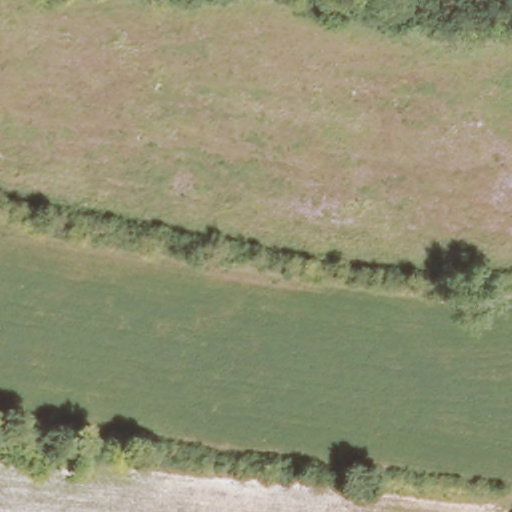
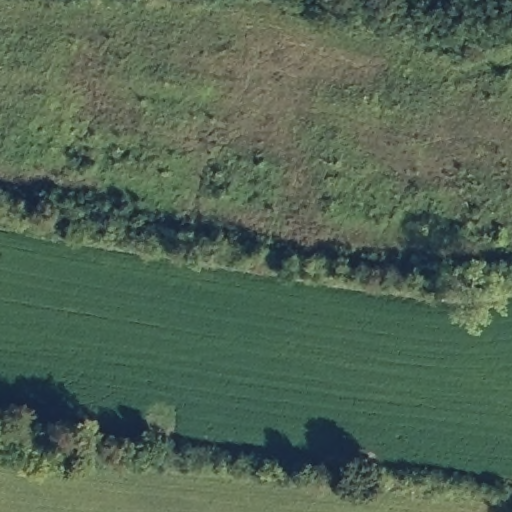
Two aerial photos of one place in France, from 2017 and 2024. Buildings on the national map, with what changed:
[]

